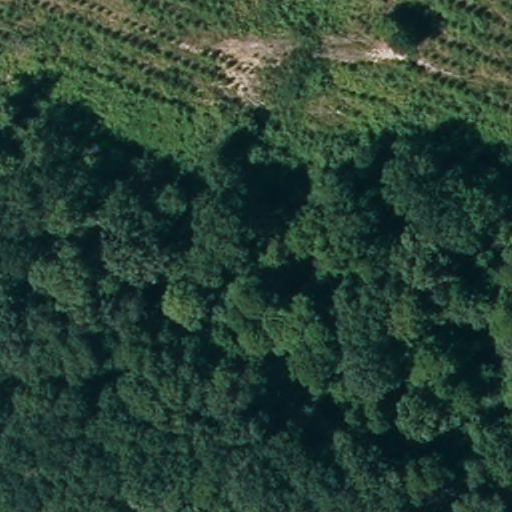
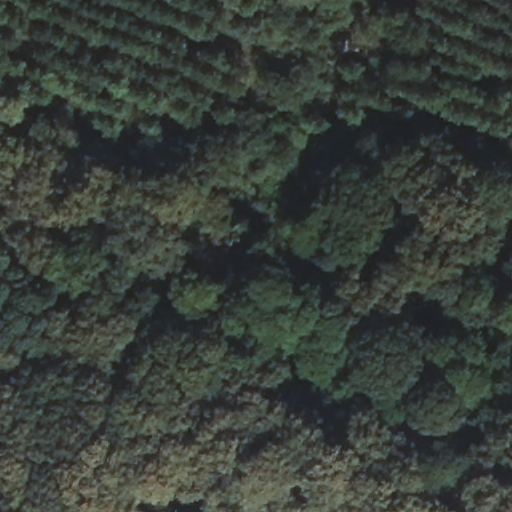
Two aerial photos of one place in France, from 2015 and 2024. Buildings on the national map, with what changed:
[]

